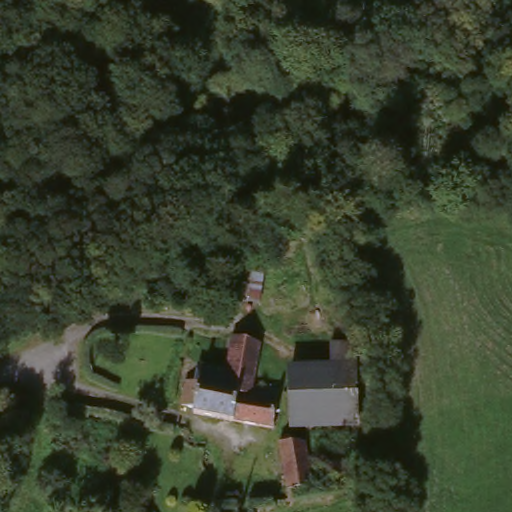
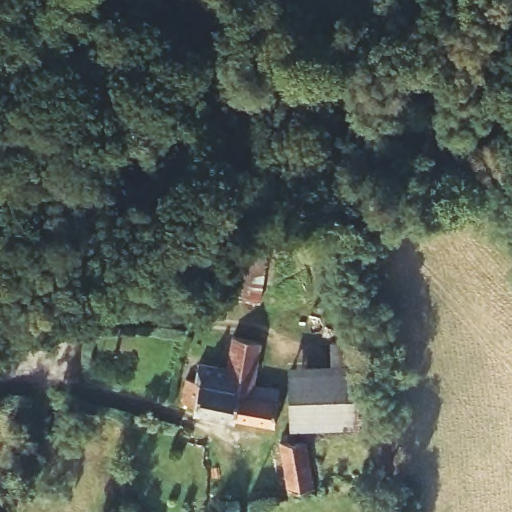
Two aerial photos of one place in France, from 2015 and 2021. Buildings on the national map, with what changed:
unchanged [(180,388),(188,390),(193,374),(224,377),(228,345),(258,349),(246,400),(275,407),(268,437),(190,422),(191,416),(175,413),(180,388)]
unchanged [(330,371),(329,352),(352,350),(358,435),(293,439),(289,373),(330,371)]
unchanged [(301,446),(310,493),(283,498),(272,447),(301,446)]

